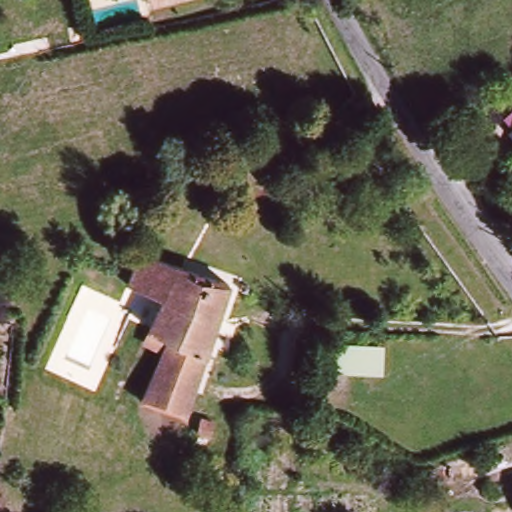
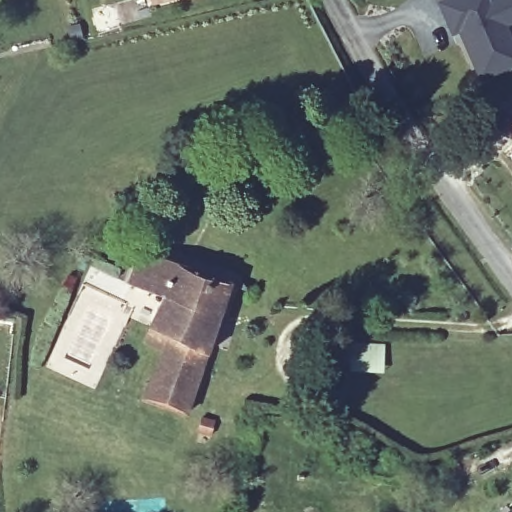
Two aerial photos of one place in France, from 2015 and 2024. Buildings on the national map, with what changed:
unchanged [(153,0),(164,0),(153,2),(153,0)]
new [(512,30),(512,65),(484,77),(466,36),(470,35),(467,26),(456,32),(442,1),(445,0),(512,0),(512,22),(509,24),(512,30)]
unchanged [(512,132),(512,133),(511,132),(512,132)]
unchanged [(138,390),(165,328),(145,320),(157,290),(124,277),(137,245),(228,278),(180,404),(138,390)]
unchanged [(196,412),(208,415),(204,430),(193,427),(196,412)]

